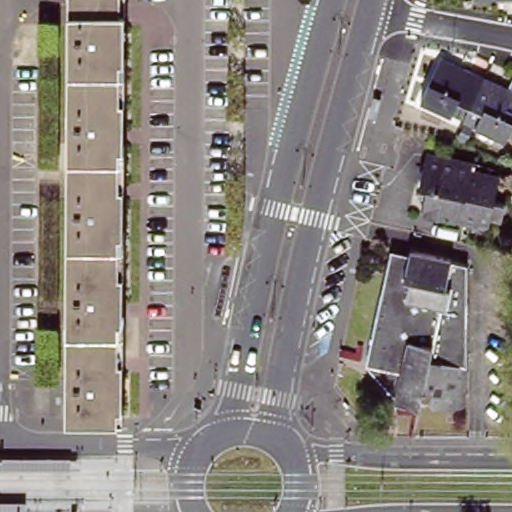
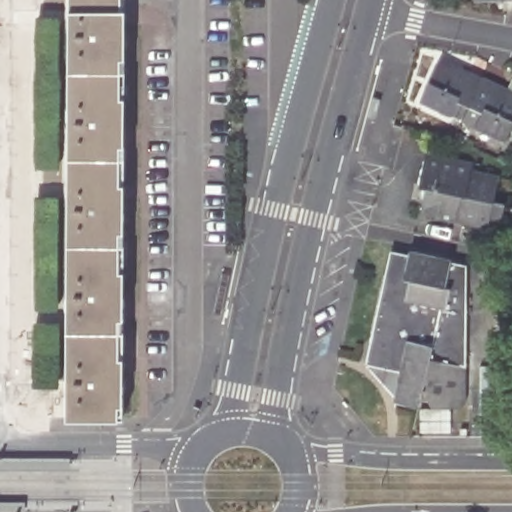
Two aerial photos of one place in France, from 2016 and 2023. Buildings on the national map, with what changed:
unchanged [(123,417),(70,416),(73,0),(125,0),(123,417)]
unchanged [(502,87),(500,91),(512,97),(512,126),(505,141),(477,129),(463,122),(423,104),(440,65),(462,74),(464,70),(502,87)]
unchanged [(469,162),(471,171),(499,177),(486,229),(418,213),(427,151),(469,162)]
unchanged [(454,263),(449,292),(453,294),(448,314),(443,313),(442,320),(383,307),(394,257),(409,260),(411,253),(454,263)]
unchanged [(442,320),(428,377),(439,381),(439,368),(469,372),(469,404),(464,409),(432,409),(432,400),(424,397),(421,409),(396,402),(403,371),(370,364),(383,307),(442,320)]

